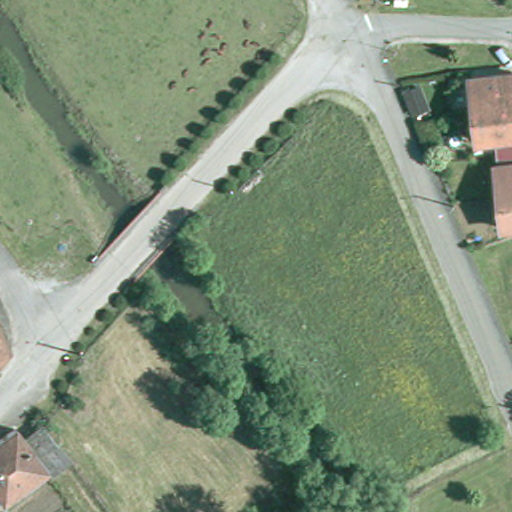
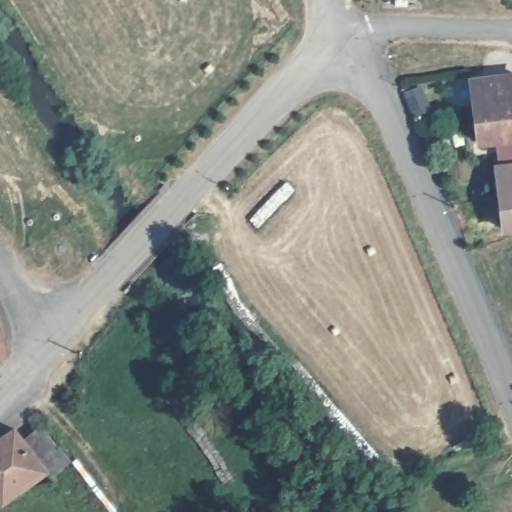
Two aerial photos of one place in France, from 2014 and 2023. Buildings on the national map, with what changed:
unchanged [(504,228),(496,170),(500,170),(497,142),(482,143),(475,81),(512,77),(512,227),(504,228)]
unchanged [(0,358),(0,325),(11,349),(0,358)]
unchanged [(0,504),(0,449),(18,437),(25,446),(42,434),(57,454),(61,451),(70,465),(50,479),(49,477),(4,510),(0,505),(0,504)]

